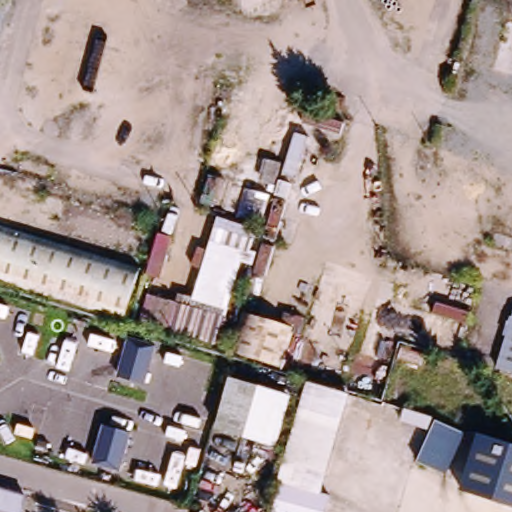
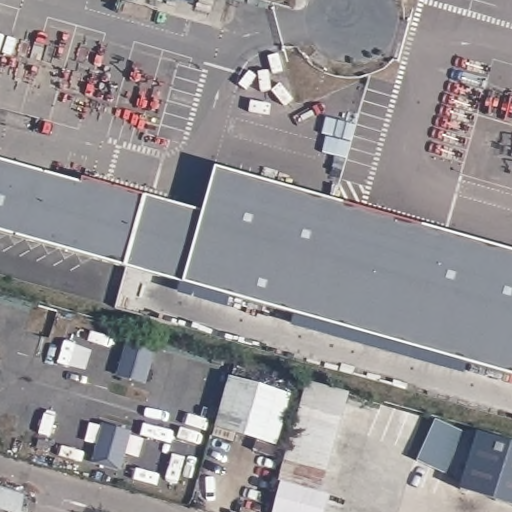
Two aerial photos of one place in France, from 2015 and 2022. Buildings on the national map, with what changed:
demolished [(341,147),(295,134),(304,107),(350,118),(341,147)]
new [(0,159),(83,182),(84,179),(205,213),(217,167),(512,250),(512,373),(185,282),(128,266),(0,230),(0,159)]
demolished [(213,308),(219,294),(201,282),(196,298),(183,292),(212,217),(232,222),(246,187),(268,192),(254,235),(249,254),(256,259),(250,276),(237,272),(227,314),(213,308)]
demolished [(494,373),(507,314),(512,315),(512,378),(494,373)]
demolished [(156,362),(149,386),(110,376),(117,351),(156,362)]
unchanged [(214,431),(225,379),(290,398),(272,452),(214,431)]
unchanged [(327,394),(337,397),(351,401),(342,433),(325,499),(282,487),(307,388),(327,394)]
unchanged [(464,430),(445,477),(414,468),(432,420),(464,430)]
unchanged [(124,435),(115,475),(91,467),(100,427),(124,435)]
unchanged [(512,444),(512,505),(462,489),(479,433),(512,444)]
unchanged [(0,491),(22,497),(19,512),(0,512),(0,491)]

